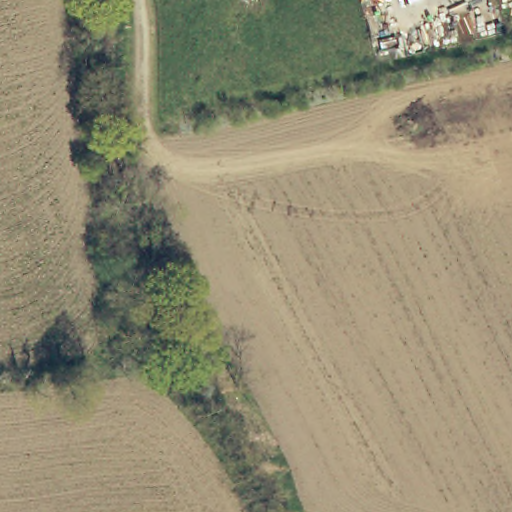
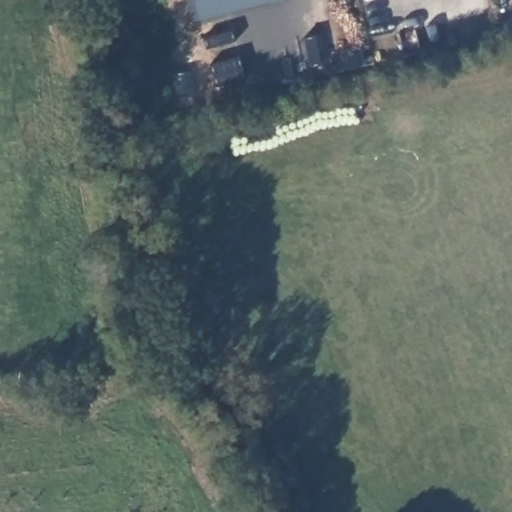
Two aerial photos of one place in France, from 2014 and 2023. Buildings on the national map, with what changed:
new [(198,22),(192,0),(278,0),(198,22)]

